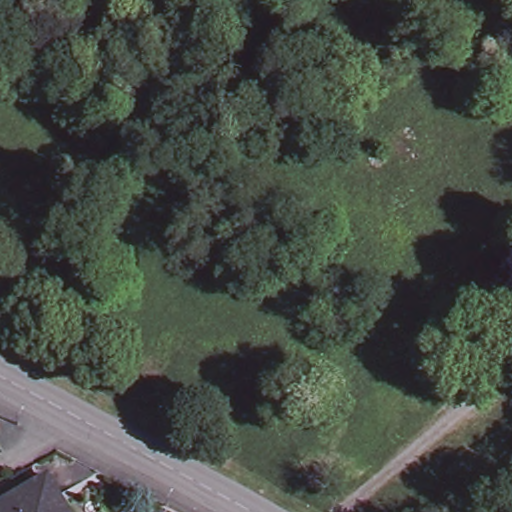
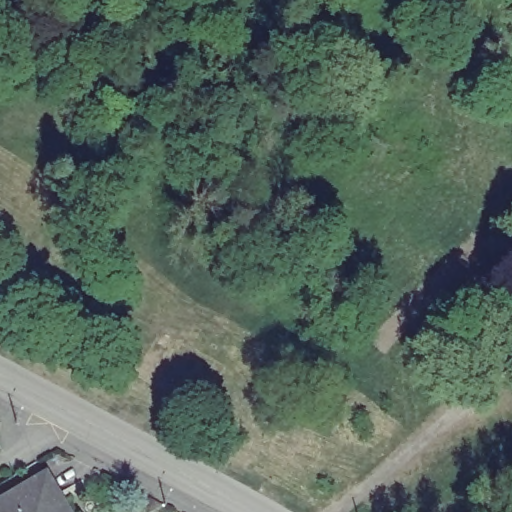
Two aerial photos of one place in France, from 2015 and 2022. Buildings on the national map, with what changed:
unchanged [(69,512),(0,512),(0,504),(48,476),(69,512)]

